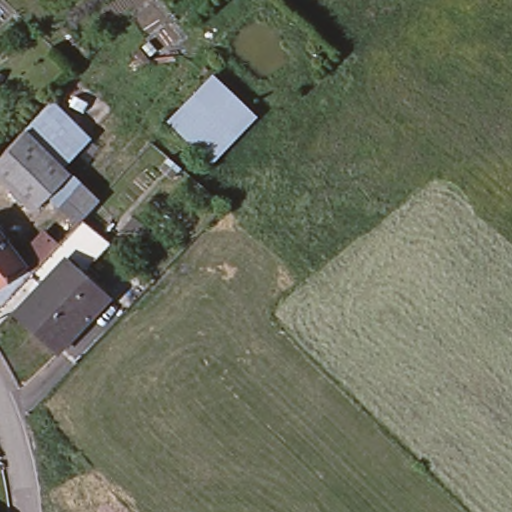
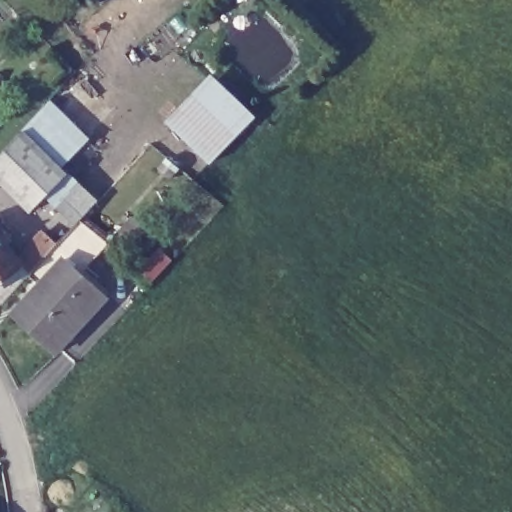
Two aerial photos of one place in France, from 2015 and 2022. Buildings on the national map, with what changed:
unchanged [(208,72),(256,115),(211,166),(162,125),(208,72)]
unchanged [(53,105),(91,143),(62,172),(26,131),(53,105)]
unchanged [(62,172),(41,193),(25,210),(0,184),(0,159),(26,131),(62,172)]
unchanged [(62,172),(99,207),(83,225),(105,244),(88,265),(84,262),(68,247),(63,242),(76,227),(41,193),(62,172)]
unchanged [(1,245),(0,246),(0,231),(7,240),(1,245)]
unchanged [(15,264),(23,275),(0,299),(0,246),(1,245),(15,264)]
unchanged [(84,262),(76,270),(101,294),(81,316),(77,313),(46,346),(9,312),(68,247),(84,262)]

